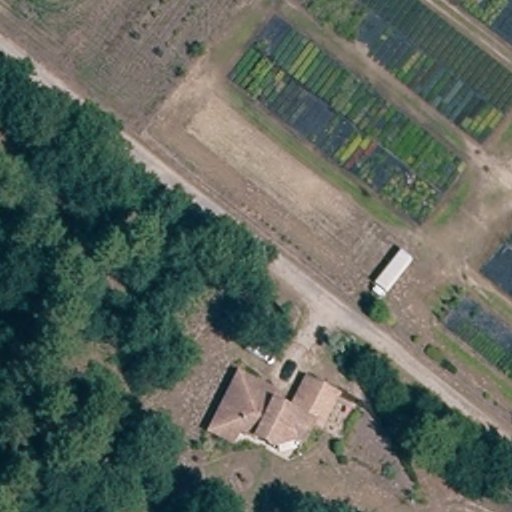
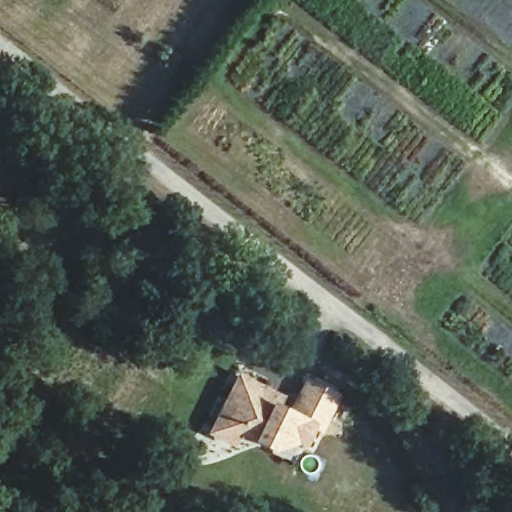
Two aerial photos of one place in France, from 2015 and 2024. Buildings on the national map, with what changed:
unchanged [(260,435),(259,434),(241,425),(235,437),(214,426),(229,394),(240,371),(271,386),(281,390),(277,398),(293,406),(309,373),(340,388),(323,423),(315,419),(306,437),(289,429),(278,433),(274,441),(260,435)]

